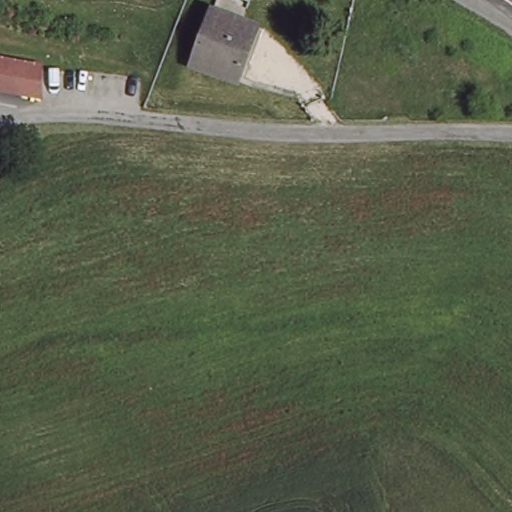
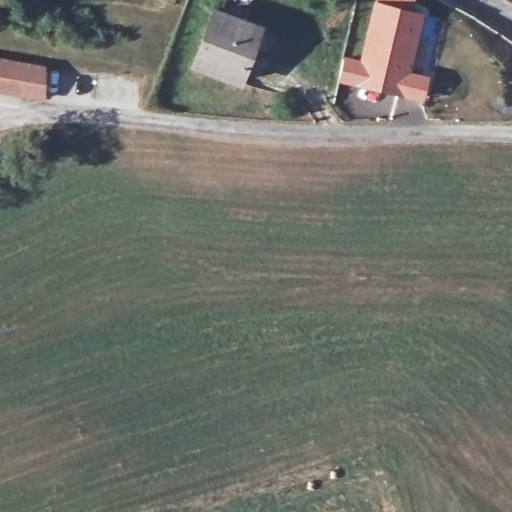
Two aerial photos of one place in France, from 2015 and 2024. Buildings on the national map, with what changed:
new [(415,0),(413,8),(424,11),(410,69),(430,74),(422,103),(338,82),(344,55),(359,57),(373,0),(415,0)]
unchanged [(259,31),(240,85),(193,69),(213,15),(259,31)]
unchanged [(40,92),(0,86),(0,51),(46,59),(40,92)]

